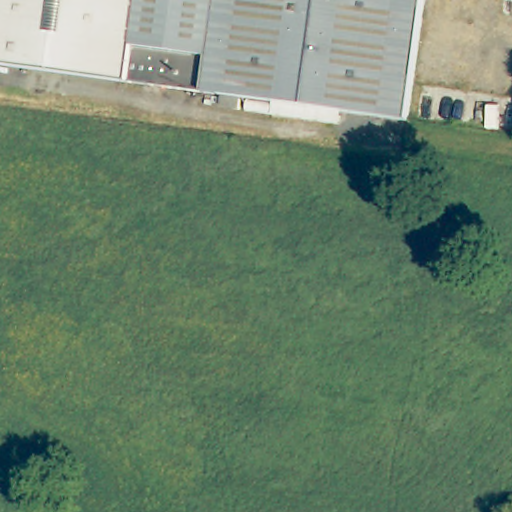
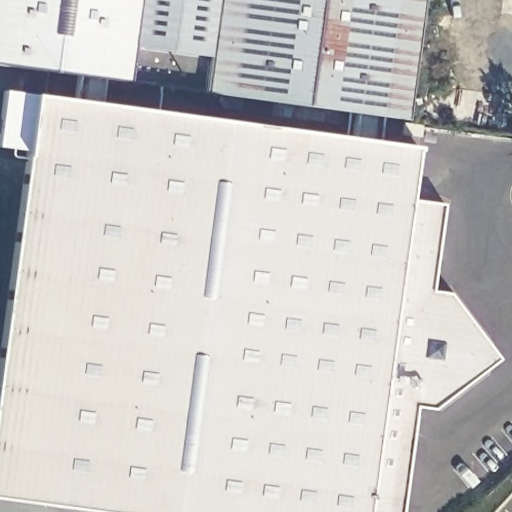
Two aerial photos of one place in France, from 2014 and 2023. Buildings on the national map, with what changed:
unchanged [(280,98),(204,87),(208,51),(133,41),(128,77),(0,60),(0,0),(423,0),(407,115),(380,111),(346,106),(344,119),(279,110),(280,98)]
new [(128,77),(133,41),(208,51),(204,87),(128,77)]
unchanged [(240,94),(239,103),(221,101),(223,91),(240,94)]
new [(0,500),(0,329),(31,93),(418,146),(411,200),(369,512),(95,512),(0,500)]
new [(434,289),(453,291),(504,358),(434,408),(420,406),(404,512),(369,512),(411,200),(445,204),(434,289)]

